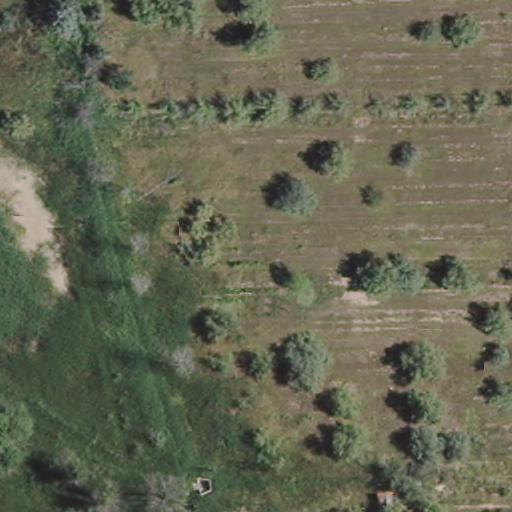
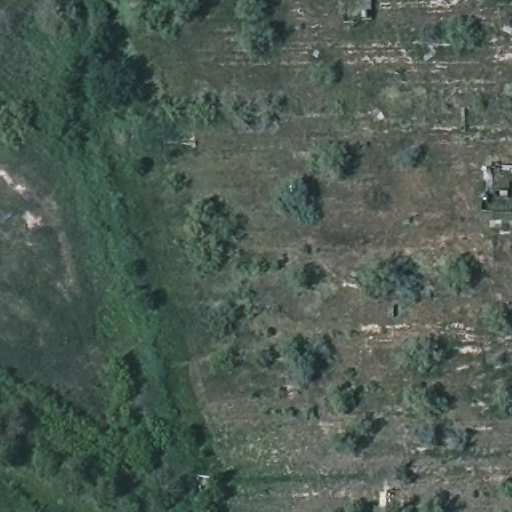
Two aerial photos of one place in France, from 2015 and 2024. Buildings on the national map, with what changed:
unchanged [(398,512),(381,512),(381,488),(399,487),(398,512)]

